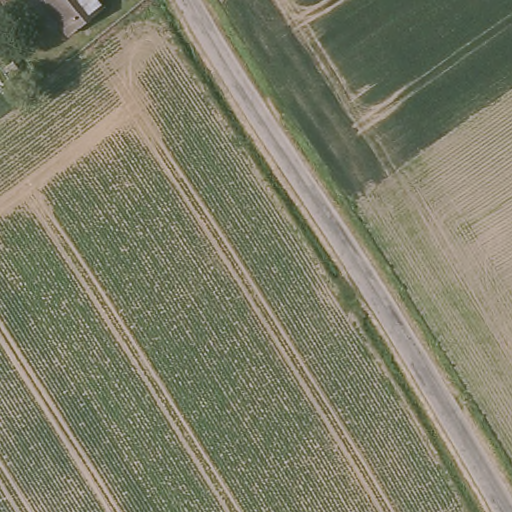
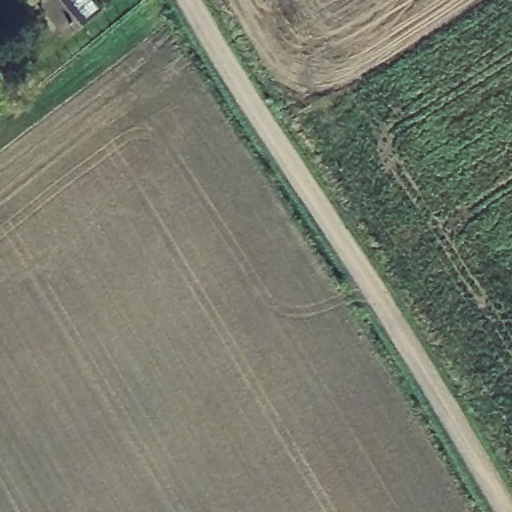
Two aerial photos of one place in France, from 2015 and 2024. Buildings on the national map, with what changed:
unchanged [(67,33),(41,0),(91,0),(97,9),(67,33)]

